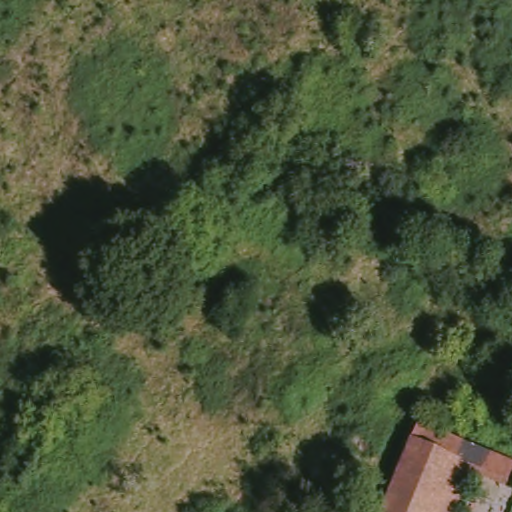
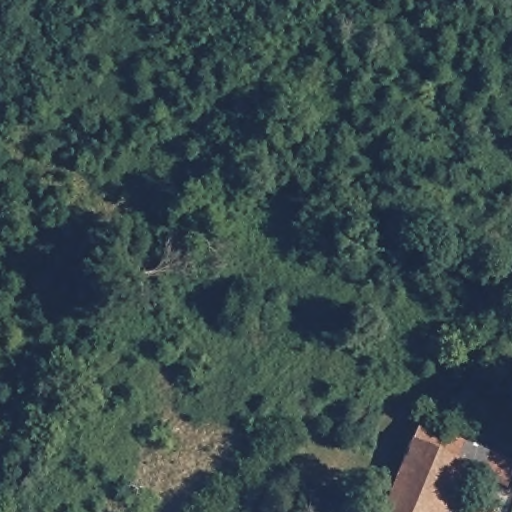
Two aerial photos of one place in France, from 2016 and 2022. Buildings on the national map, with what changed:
unchanged [(425,422),(492,451),(512,459),(512,470),(506,486),(473,475),(457,512),(383,512),(425,422)]

